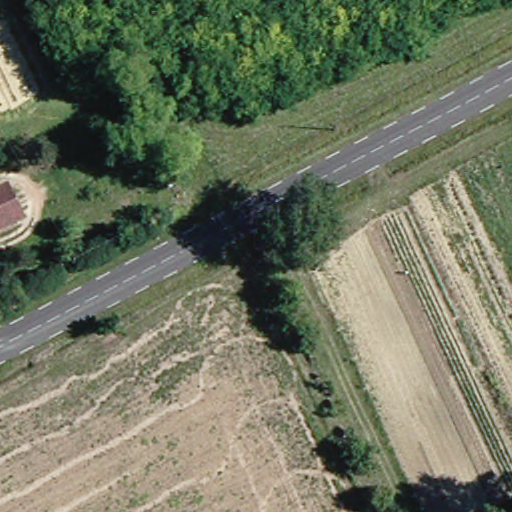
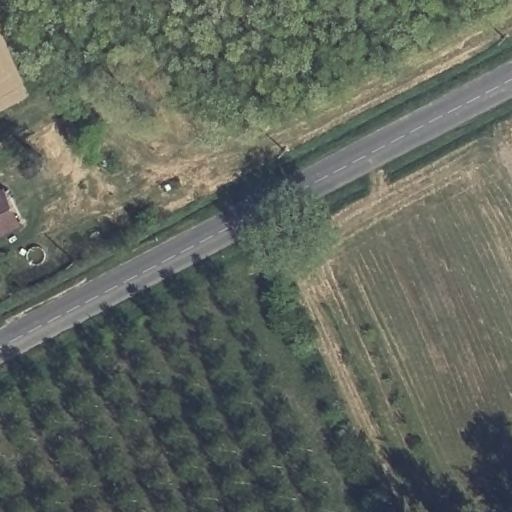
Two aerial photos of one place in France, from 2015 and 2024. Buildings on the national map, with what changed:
unchanged [(4,207),(0,210),(0,200),(4,207)]

